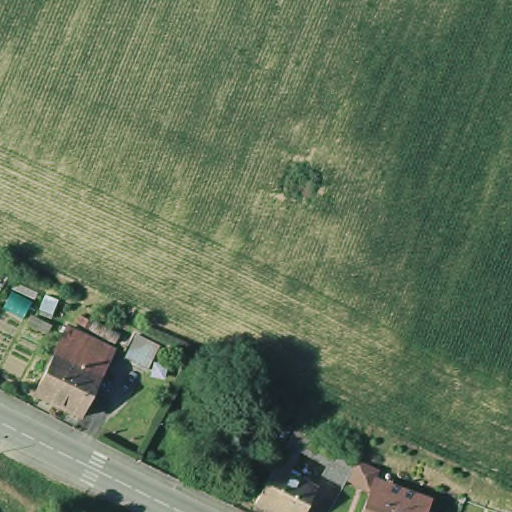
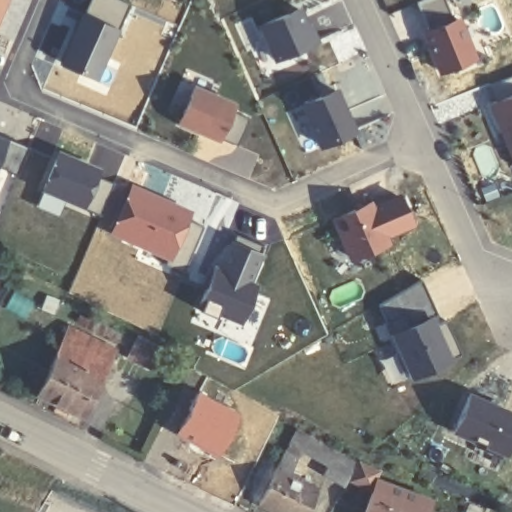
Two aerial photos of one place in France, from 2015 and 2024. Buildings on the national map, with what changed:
new [(9,0),(0,22),(0,0),(9,0)]
new [(100,85),(58,66),(81,9),(88,11),(91,0),(128,0),(133,1),(100,85)]
new [(322,40),(273,61),(255,25),(300,3),(322,40)]
new [(478,56),(437,71),(419,29),(463,12),(478,56)]
new [(238,101),(234,109),(249,116),(239,141),(224,138),(223,141),(178,123),(196,84),(238,101)]
new [(359,130),(321,148),(296,103),(339,85),(359,130)]
new [(512,92),(512,155),(486,101),(512,92)]
new [(30,144),(17,170),(0,164),(0,132),(30,144)]
new [(99,169),(94,173),(116,183),(101,212),(46,189),(60,151),(99,169)]
new [(191,209),(189,217),(204,223),(184,270),(168,264),(171,257),(109,233),(133,181),(191,209)]
new [(378,202),(404,192),(417,225),(392,236),(394,244),(352,260),(330,219),(374,198),(378,202)]
new [(264,251),(251,279),(259,282),(241,321),(199,304),(214,260),(221,264),(231,240),(264,251)]
new [(418,279),(434,312),(387,334),(375,304),(418,279)]
new [(434,312),(459,355),(409,379),(387,334),(434,312)]
unchanged [(88,326),(84,332),(76,327),(80,321),(88,326)]
unchanged [(55,362),(70,333),(113,355),(98,384),(55,362)]
unchanged [(143,376),(122,362),(133,347),(136,341),(157,354),(153,359),(143,376)]
unchanged [(80,420),(36,398),(55,362),(98,384),(80,420)]
new [(197,389),(243,413),(218,457),(173,433),(197,389)]
new [(512,445),(508,456),(453,432),(469,389),(512,408),(512,445)]
unchanged [(346,491),(324,479),(329,470),(289,449),(294,441),(299,434),(359,469),(346,491)]
unchanged [(308,512),(266,512),(256,507),(274,472),(283,456),(296,463),(288,478),(316,495),(308,512)]
unchanged [(374,489),(392,495),(394,488),(431,501),(429,507),(427,512),(366,512),(374,489)]

